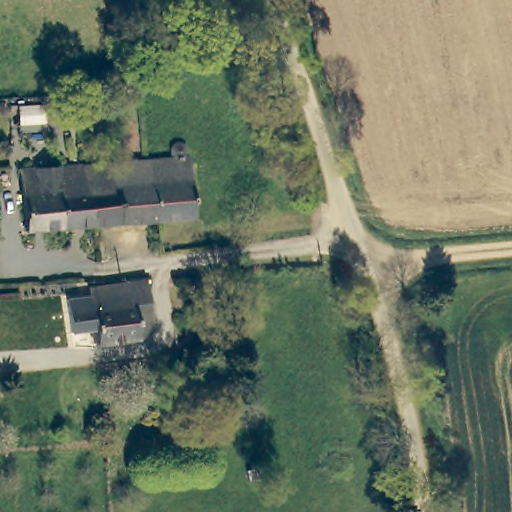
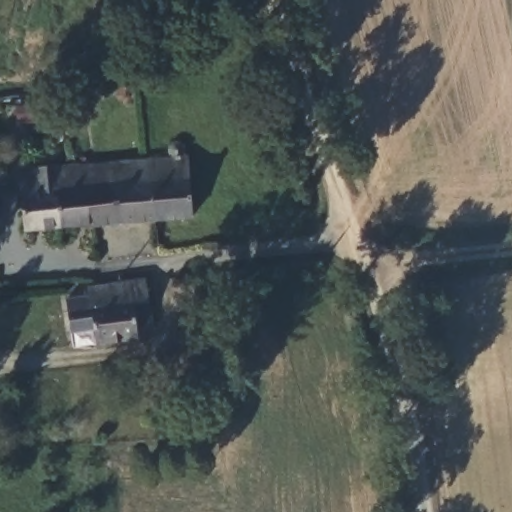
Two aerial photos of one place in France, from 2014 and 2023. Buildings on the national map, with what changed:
unchanged [(160,220),(155,160),(175,159),(173,146),(176,142),(179,141),(186,144),(190,149),(191,156),(196,217),(160,220)]
unchanged [(125,223),(121,163),(152,160),(155,160),(160,220),(125,223)]
unchanged [(90,165),(114,164),(121,163),(125,223),(94,225),(90,165)]
unchanged [(36,230),(26,230),(25,215),(24,194),(23,170),(40,167),(54,166),(59,169),(70,167),(82,166),(90,165),(94,225),(36,230)]
unchanged [(163,327),(142,335),(104,340),(102,326),(79,328),(76,296),(99,294),(98,288),(107,285),(156,275),(163,327)]

